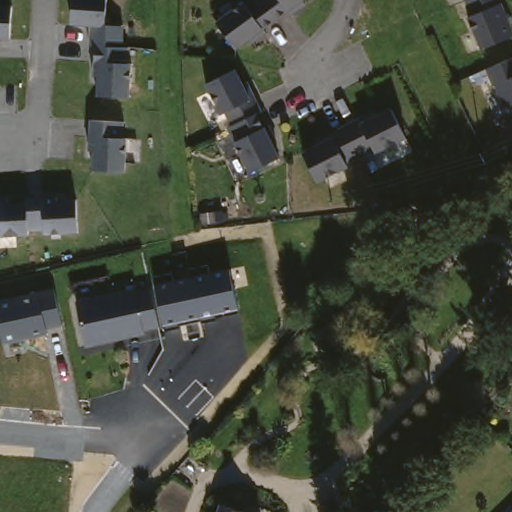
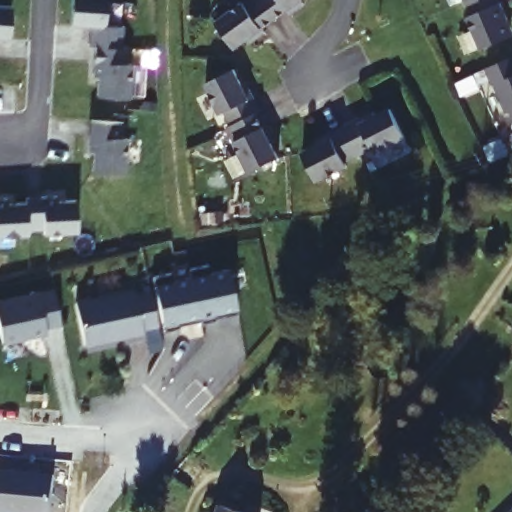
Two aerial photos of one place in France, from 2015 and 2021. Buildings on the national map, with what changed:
unchanged [(102,31),(120,33),(119,54),(125,54),(124,70),(128,70),(126,103),(95,101),(95,83),(90,82),(91,52),(85,53),(87,33),(68,31),(70,0),(90,0),(104,1),(102,31)]
unchanged [(298,8),(303,16),(285,26),(283,24),(257,39),(260,43),(245,51),(243,50),(230,57),(210,20),(243,0),(310,0),(311,1),(298,8)]
unchanged [(502,25),(508,38),(478,51),(463,19),(470,15),(465,2),(470,0),(496,0),(507,22),(502,25)]
unchanged [(464,0),(470,0),(465,2),(464,0)]
unchanged [(5,31),(5,44),(0,43),(0,12),(6,12),(5,31)]
unchanged [(510,116),(505,119),(492,89),(490,90),(482,73),(512,59),(512,123),(510,116)]
unchanged [(257,118),(252,121),(258,133),(264,131),(271,144),(265,146),(273,161),(245,175),(202,87),(230,73),(236,87),(242,85),(257,118)]
unchanged [(370,122),(385,115),(400,143),(368,158),(366,152),(338,164),(342,170),(310,184),(296,156),(312,149),(310,144),(368,118),(370,122)]
unchanged [(116,127),(116,143),(120,143),(119,177),(87,176),(88,156),(83,156),(84,126),(116,127)]
unchanged [(9,210),(27,208),(27,204),(57,202),(57,206),(76,205),(79,237),(45,239),(45,235),(30,236),(30,240),(0,242),(0,205),(9,205),(9,210)]
unchanged [(226,270),(237,310),(165,326),(155,286),(226,270)]
unchanged [(134,290),(135,293),(149,289),(158,328),(141,333),(141,336),(85,348),(75,302),(134,290)]
unchanged [(47,334),(4,342),(0,324),(0,302),(35,294),(36,299),(54,294),(62,324),(46,328),(47,334)]
new [(58,469),(54,512),(0,507),(0,469),(1,464),(58,469)]
unchanged [(219,505),(238,512),(216,512),(219,505)]

